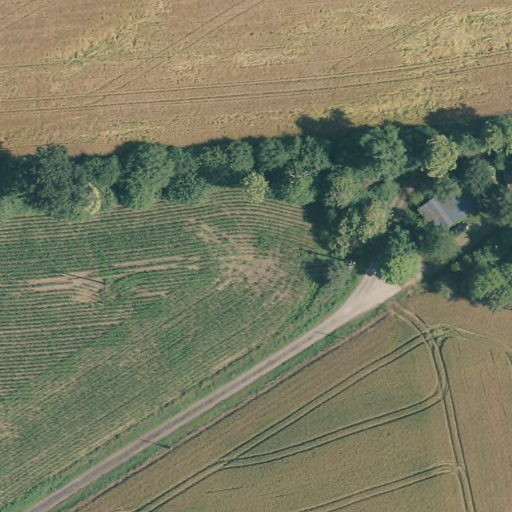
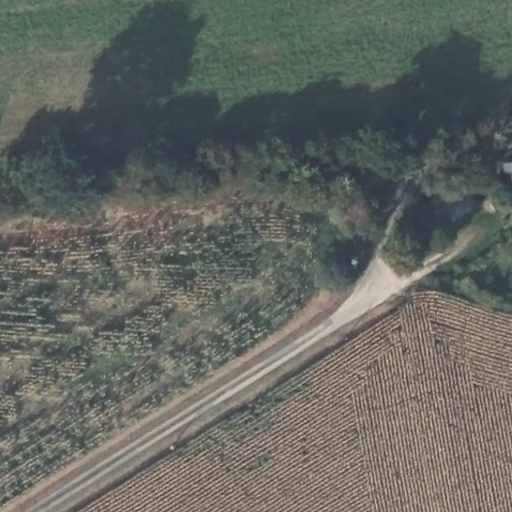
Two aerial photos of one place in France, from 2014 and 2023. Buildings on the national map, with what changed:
unchanged [(457,202),(471,230),(429,251),(415,223),(457,202)]

